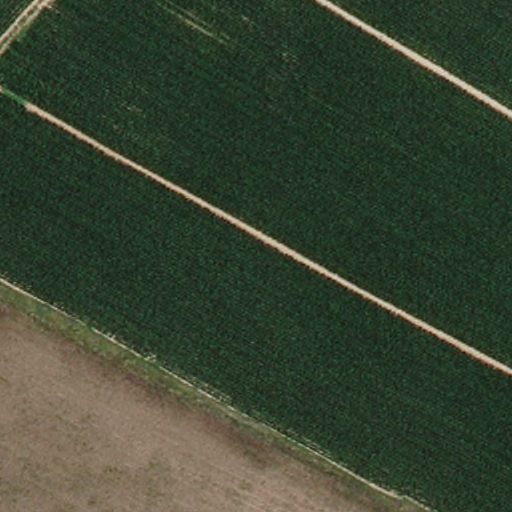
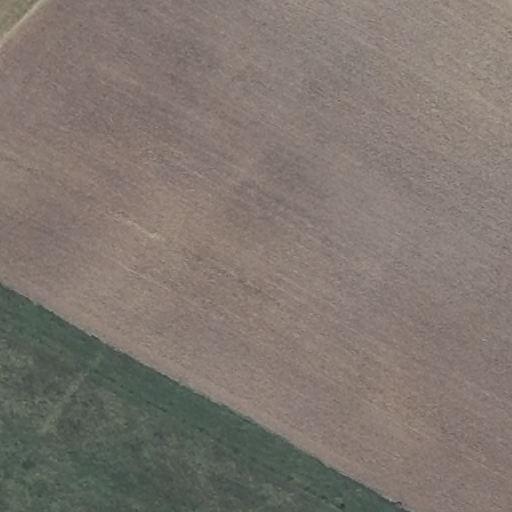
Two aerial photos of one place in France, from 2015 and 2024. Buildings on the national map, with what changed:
[]

